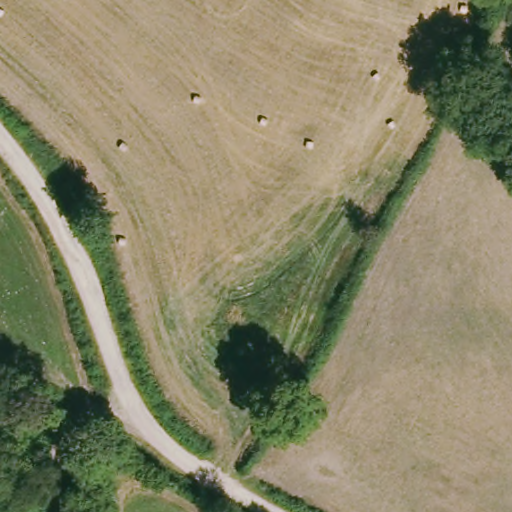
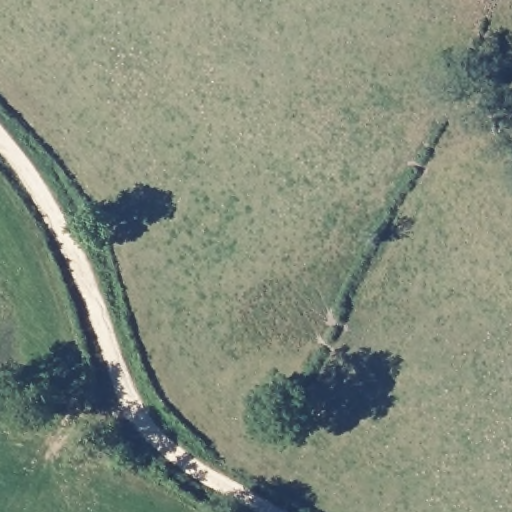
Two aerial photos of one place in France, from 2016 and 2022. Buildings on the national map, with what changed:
[]

